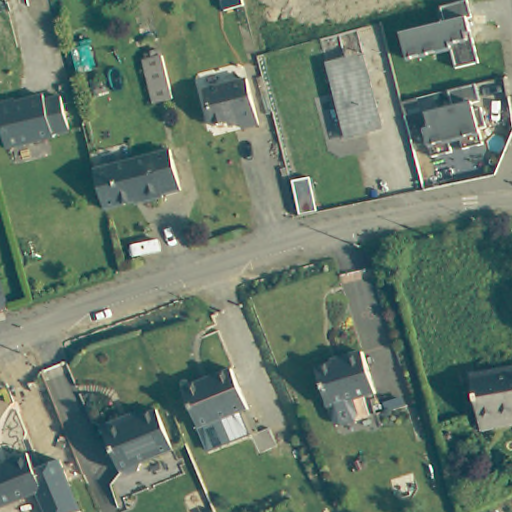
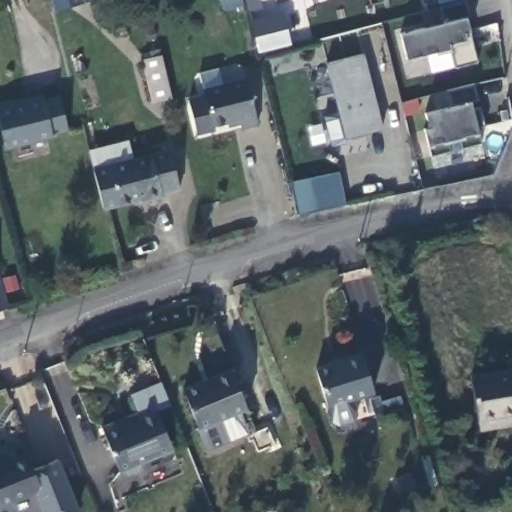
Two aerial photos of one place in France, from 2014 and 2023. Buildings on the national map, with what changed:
new [(51,10),(48,0),(80,0),(81,3),(51,10)]
new [(224,11),(221,0),(242,0),(243,6),(224,11)]
unchanged [(440,10),(468,4),(472,20),(468,21),(479,65),(456,71),(451,51),(407,62),(401,36),(444,25),(440,10)]
unchanged [(345,139),(330,81),(327,65),(365,56),(368,72),(383,130),(345,139)]
unchanged [(140,63),(159,57),(170,100),(150,105),(140,63)]
unchanged [(246,71),(258,116),(240,120),(238,112),(212,119),(203,81),(246,71)]
unchanged [(479,104),(472,105),(474,111),(481,110),(486,130),(478,131),(482,146),(462,151),(460,143),(449,145),(451,154),(431,159),(424,131),(429,130),(425,116),(451,110),(447,94),(475,86),(479,104)]
unchanged [(51,136),(4,148),(0,130),(0,102),(13,99),(14,104),(23,101),(23,99),(41,95),(42,100),(58,95),(68,130),(51,134),(51,136)]
unchanged [(136,196),(121,200),(106,204),(101,180),(96,163),(123,156),(173,145),(184,185),(164,190),(165,193),(147,197),(146,195),(136,196)]
new [(346,205),(299,215),(292,181),(339,172),(346,205)]
unchanged [(0,316),(0,274),(12,312),(0,316)]
unchanged [(316,365),(342,360),(341,355),(368,349),(380,393),(353,399),(356,415),(353,421),(338,425),(332,420),(328,405),(327,405),(316,365)]
unchanged [(226,428),(202,438),(192,415),(175,375),(226,355),(243,395),(234,399),(243,421),(226,428)]
unchanged [(478,420),(470,375),(512,368),(512,425),(480,430),(478,420)]
unchanged [(154,407),(171,447),(139,460),(136,468),(125,471),(118,470),(99,423),(118,416),(120,421),(154,407)]
unchanged [(57,460),(77,510),(71,512),(43,512),(36,495),(0,509),(0,468),(8,465),(6,460),(12,458),(26,452),(26,453),(28,458),(33,469),(57,460)]

